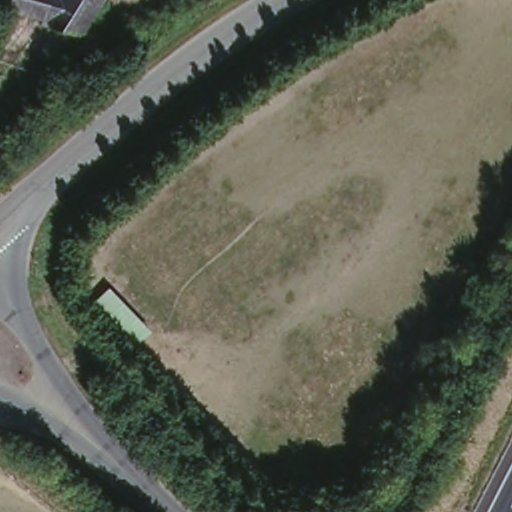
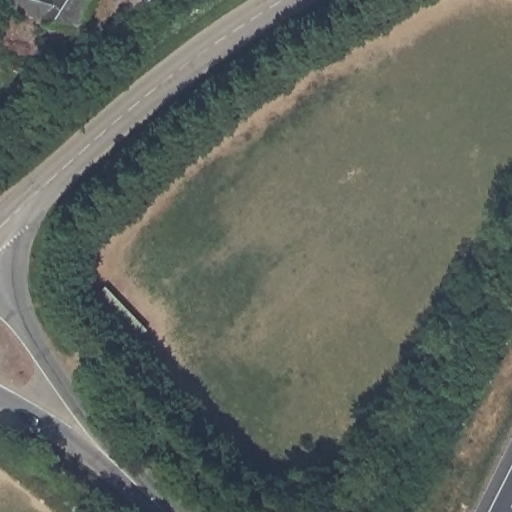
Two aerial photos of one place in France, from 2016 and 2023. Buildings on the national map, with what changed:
unchanged [(6,0),(103,0),(85,30),(41,19),(40,12),(4,7),(6,0)]
unchanged [(151,331),(130,355),(85,308),(109,286),(151,331)]

